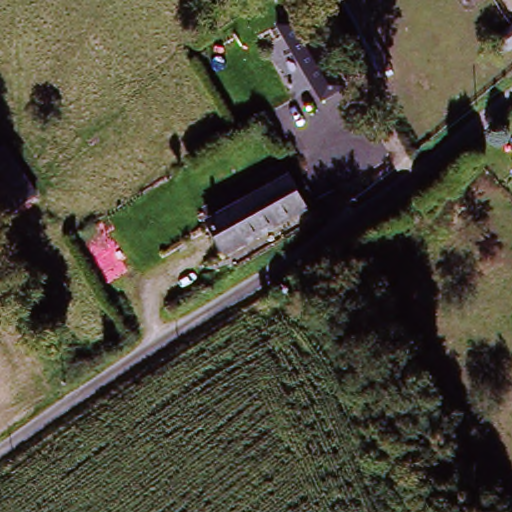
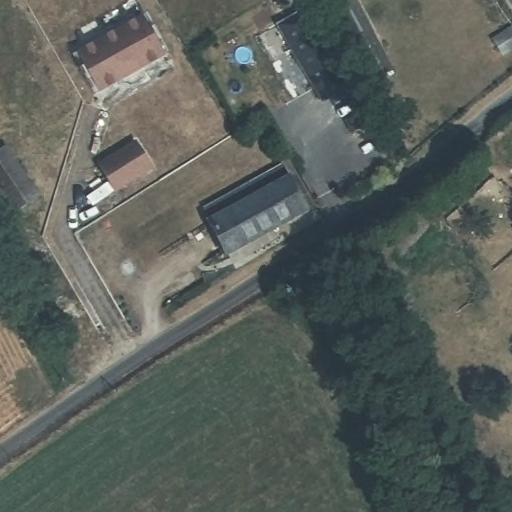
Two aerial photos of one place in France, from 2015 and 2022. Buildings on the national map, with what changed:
unchanged [(322,104),(285,28),(312,15),(349,90),(322,104)]
new [(136,19),(158,58),(101,90),(78,53),(136,19)]
demolished [(467,34),(477,48),(458,62),(448,48),(467,34)]
new [(137,145),(151,171),(115,193),(98,166),(137,145)]
unchanged [(0,184),(0,149),(6,146),(35,199),(14,211),(0,184)]
unchanged [(221,251),(206,229),(292,173),(307,195),(221,251)]

